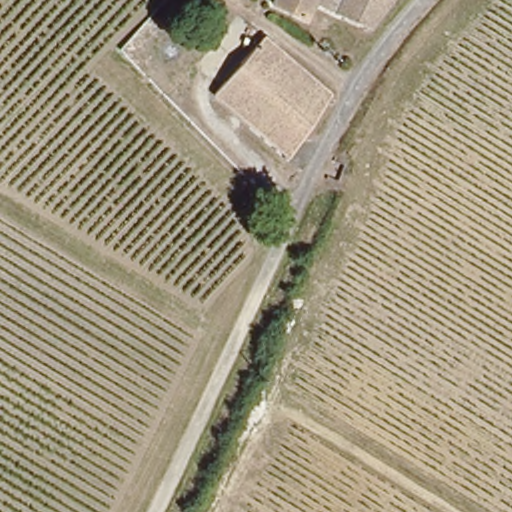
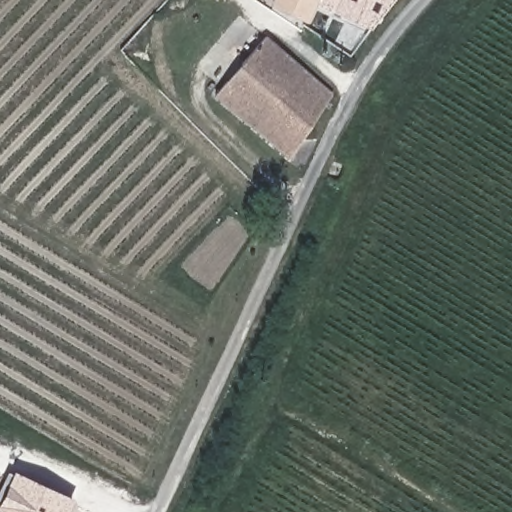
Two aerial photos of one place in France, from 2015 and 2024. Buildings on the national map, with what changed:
unchanged [(300,16),(266,0),(267,0),(307,0),(300,16)]
unchanged [(364,24),(310,0),(385,0),(364,24)]
unchanged [(262,135),(216,95),(263,38),(332,95),(290,156),(262,135)]
new [(0,512),(0,503),(15,471),(76,499),(70,512),(0,512)]

